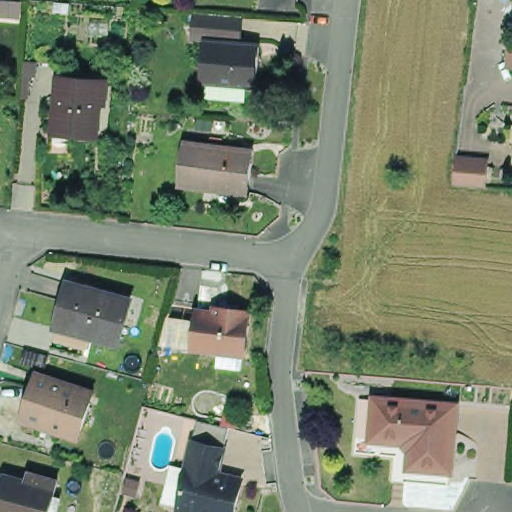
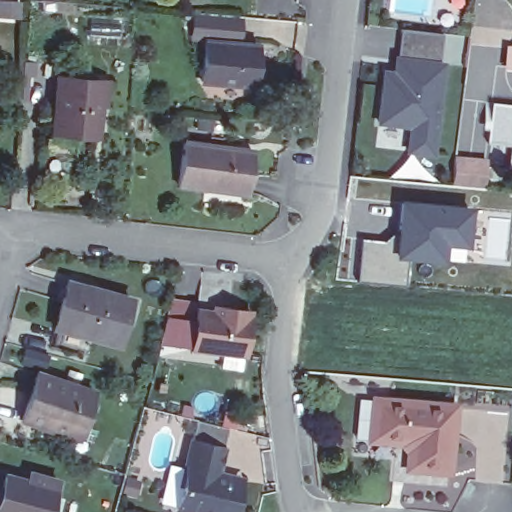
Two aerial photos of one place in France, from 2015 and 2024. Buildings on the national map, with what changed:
unchanged [(50,0),(54,0),(53,1),(50,0)]
unchanged [(233,17),(231,45),(208,42),(190,41),(193,14),(233,17)]
new [(434,157),(403,154),(407,128),(375,124),(381,67),(392,69),(393,56),(398,56),(402,30),(443,34),(439,61),(447,62),(434,157)]
unchanged [(231,45),(257,47),(253,87),(204,82),(208,42),(231,45)]
unchanged [(55,77),(100,82),(95,132),(94,138),(50,134),(50,127),(55,77)]
unchanged [(19,124),(19,126),(13,126),(13,124),(15,101),(17,87),(29,89),(28,104),(20,104),(19,124)]
unchanged [(508,124),(505,119),(507,100),(512,101),(512,145),(505,144),(508,124)]
unchanged [(175,185),(180,144),(249,153),(243,194),(175,185)]
unchanged [(454,153),(485,157),(483,183),(452,180),(451,180),(454,153)]
new [(467,246),(445,242),(444,261),(408,257),(405,288),(358,283),(360,240),(398,245),(401,203),(469,210),(467,246)]
unchanged [(128,302),(115,345),(53,327),(67,283),(128,302)]
unchanged [(193,345),(197,317),(197,306),(215,308),(216,302),(233,304),(250,306),(246,351),(243,367),(214,363),(215,348),(193,345)]
unchanged [(197,317),(193,345),(160,353),(170,313),(197,317)]
unchanged [(93,394),(77,443),(20,425),(36,377),(93,394)]
unchanged [(450,472),(412,468),(413,453),(407,446),(373,440),(375,400),(455,407),(450,472)]
unchanged [(230,512),(181,512),(175,511),(189,447),(218,453),(212,480),(236,486),(230,512)]
unchanged [(27,476),(56,483),(48,512),(0,512),(0,494),(3,481),(25,485),(27,476)]

